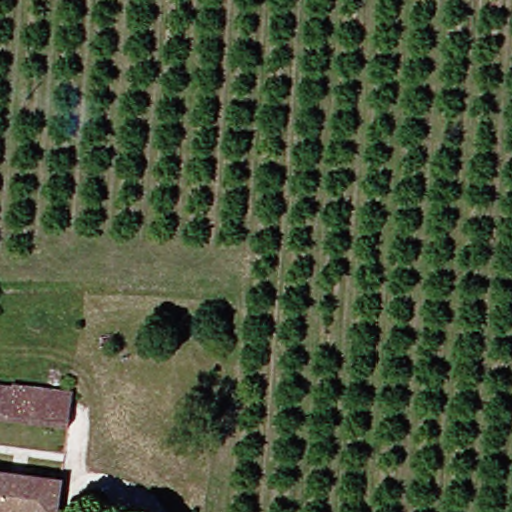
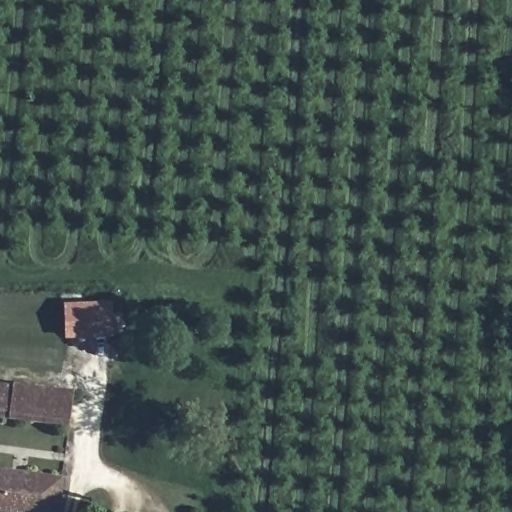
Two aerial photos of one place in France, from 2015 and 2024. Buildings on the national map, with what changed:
new [(66,337),(65,301),(110,300),(112,335),(66,337)]
unchanged [(75,421),(0,412),(0,380),(80,390),(75,421)]
unchanged [(64,512),(40,512),(0,507),(0,467),(69,475),(64,512)]

